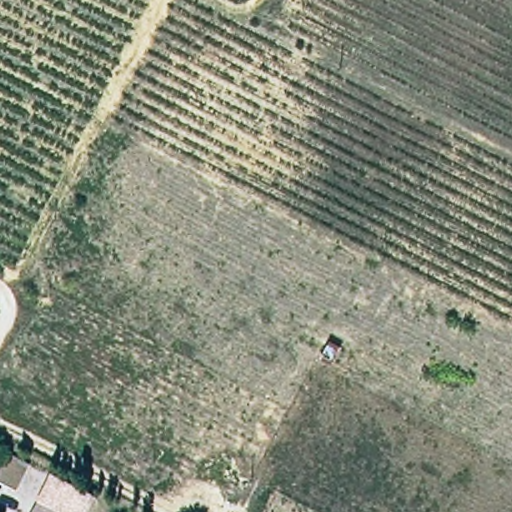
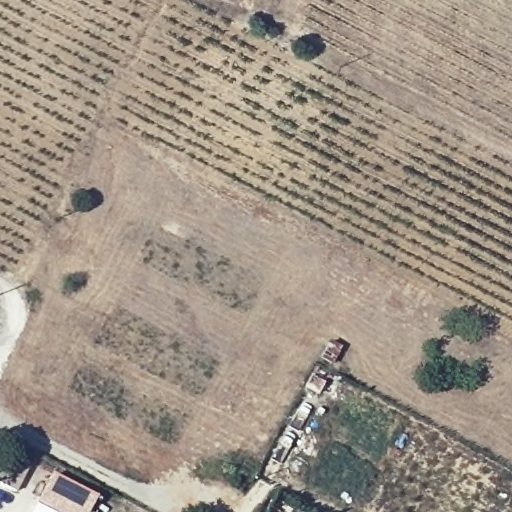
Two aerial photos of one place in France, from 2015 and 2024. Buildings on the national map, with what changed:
unchanged [(28,466),(17,493),(0,486),(0,460),(3,453),(28,466)]
unchanged [(64,512),(38,499),(52,472),(97,495),(87,512),(64,512)]

